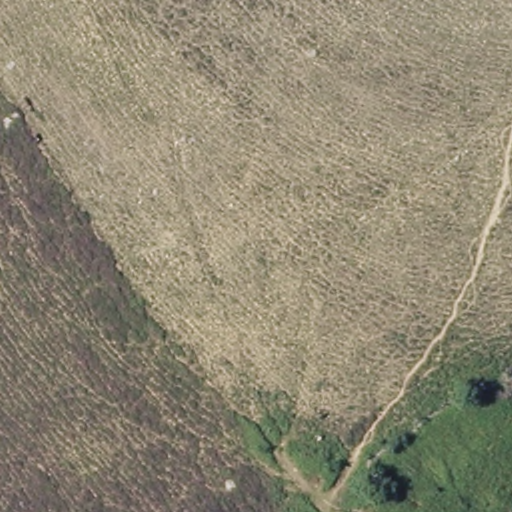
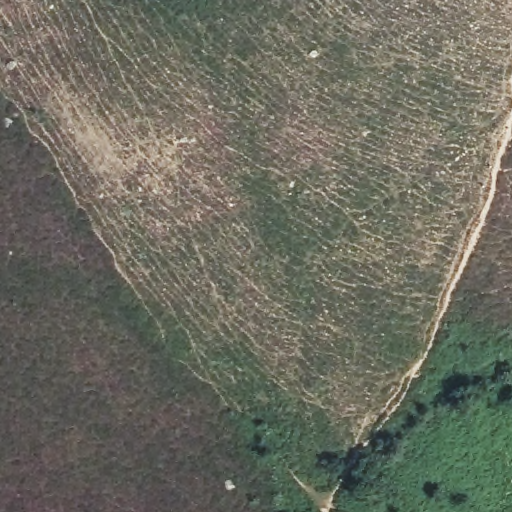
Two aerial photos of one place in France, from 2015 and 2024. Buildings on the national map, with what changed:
[]

